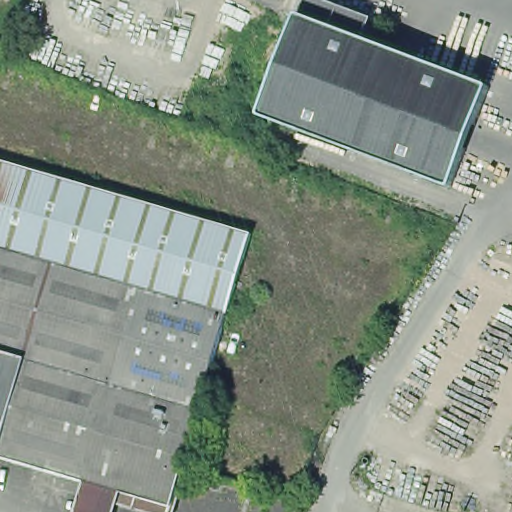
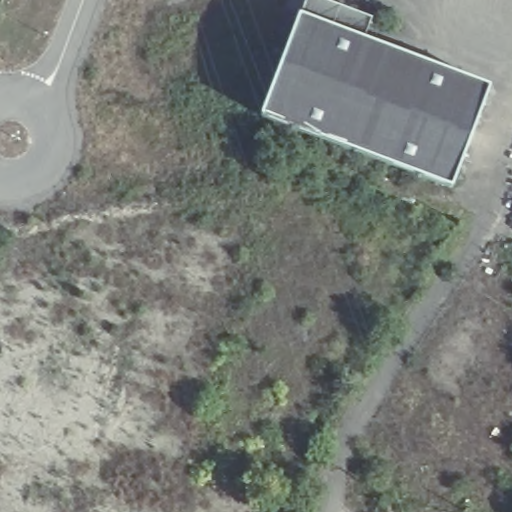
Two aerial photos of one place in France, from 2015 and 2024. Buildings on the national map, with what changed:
unchanged [(483,80),(484,81),(484,82),(484,84),(448,181),(447,182),(446,182),(444,182),(257,111),(256,111),(255,110),(256,109),(293,11),(293,10),(294,10),(296,10),(483,80)]
demolished [(0,160),(251,234),(228,313),(183,466),(112,446),(96,441),(85,480),(50,471),(0,456),(0,160)]
demolished [(96,441),(112,446),(183,466),(179,480),(183,481),(174,512),(146,512),(118,503),(80,492),(85,480),(96,441)]

